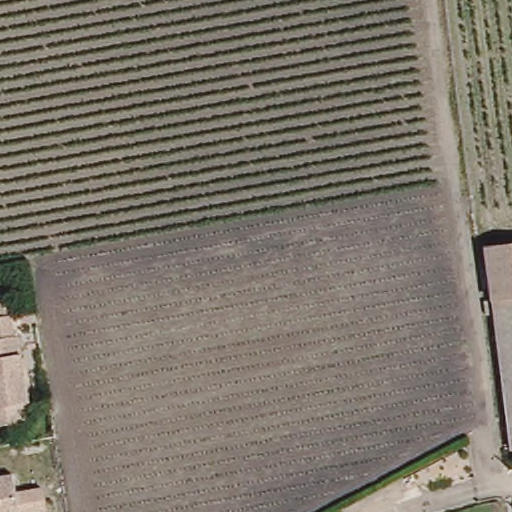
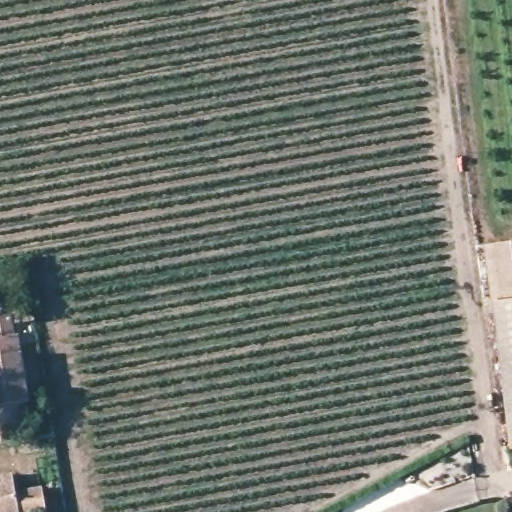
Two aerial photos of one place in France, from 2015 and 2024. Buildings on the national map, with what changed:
unchanged [(510,446),(484,244),(512,240),(512,446),(510,446)]
unchanged [(26,397),(20,398),(0,401),(0,332),(14,330),(26,397)]
unchanged [(454,473),(453,450),(470,448),(472,470),(454,473)]
unchanged [(39,512),(0,512),(0,473),(14,470),(17,489),(45,487),(47,511),(39,512)]

